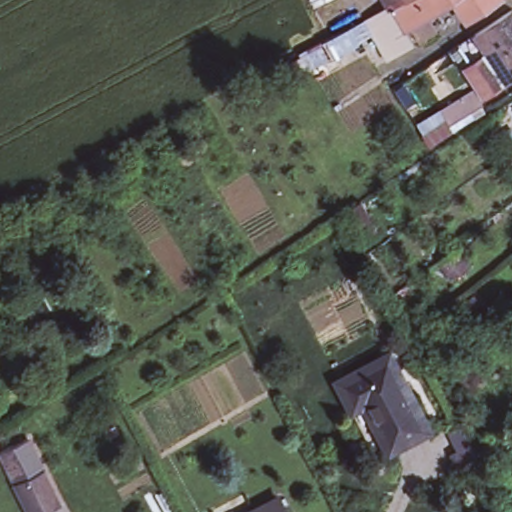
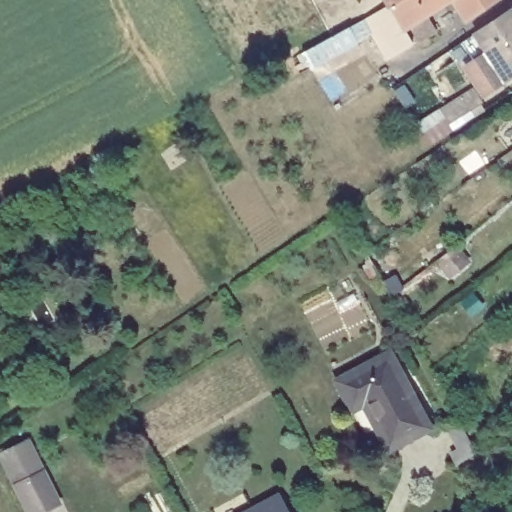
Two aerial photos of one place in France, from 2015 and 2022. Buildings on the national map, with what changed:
unchanged [(403,52),(389,60),(365,20),(355,0),(453,0),(454,1),(430,17),(438,31),(420,42),(412,29),(408,31),(415,45),(403,52)]
unchanged [(468,22),(454,1),(453,0),(502,0),(468,22)]
unchanged [(490,82),(480,66),(492,57),(476,30),(512,7),(512,75),(506,79),(493,87),(490,82)]
unchanged [(483,107),(465,117),(458,107),(455,102),(473,92),(475,96),(483,107)]
unchanged [(457,247),(468,262),(452,275),(440,260),(457,247)]
unchanged [(367,400),(357,405),(342,380),(392,352),(413,392),(377,416),(367,400)]
unchanged [(413,392),(431,424),(393,446),(377,416),(413,392)]
unchanged [(34,457),(42,473),(57,505),(43,512),(28,512),(15,486),(7,470),(34,457)]
unchanged [(286,512),(253,512),(278,498),(286,512)]

